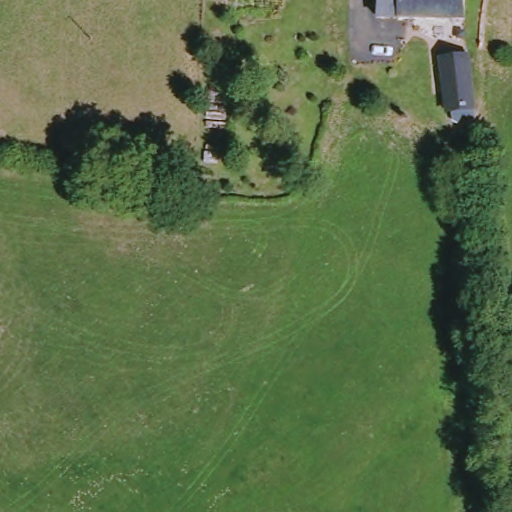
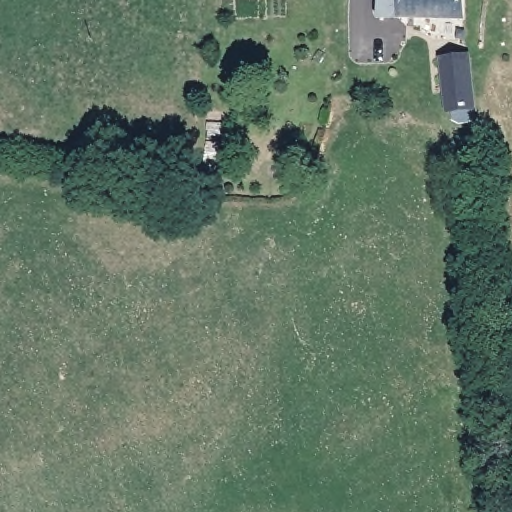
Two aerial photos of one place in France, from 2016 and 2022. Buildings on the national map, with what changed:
unchanged [(378,17),(379,0),(460,0),(459,19),(378,17)]
unchanged [(450,58),(474,56),(478,123),(463,124),(462,114),(452,115),(450,58)]

